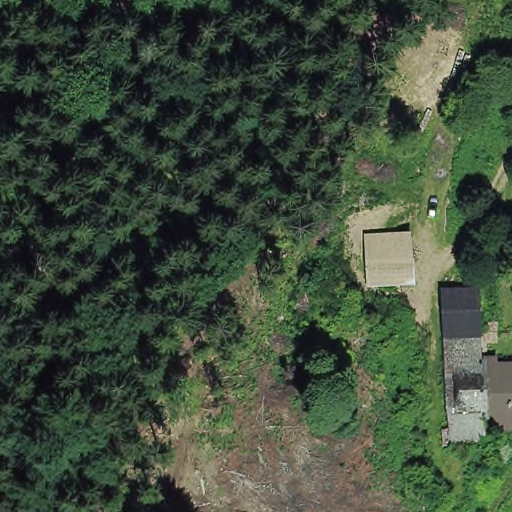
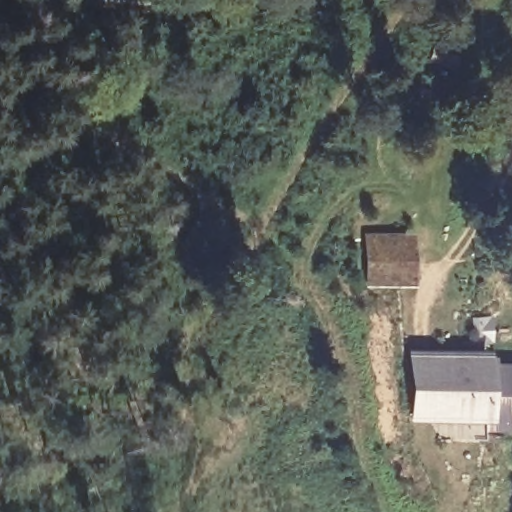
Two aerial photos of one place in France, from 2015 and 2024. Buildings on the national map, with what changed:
unchanged [(411,233),(415,285),(368,287),(364,235),(411,233)]
demolished [(442,288),(482,287),(484,331),(446,332),(442,288)]
demolished [(487,431),(447,430),(446,332),(484,331),(482,362),(486,419),(487,431)]
new [(482,362),(486,419),(413,421),(410,349),(487,346),(488,362),(482,362)]
unchanged [(512,361),(512,418),(486,419),(482,362),(512,361)]

